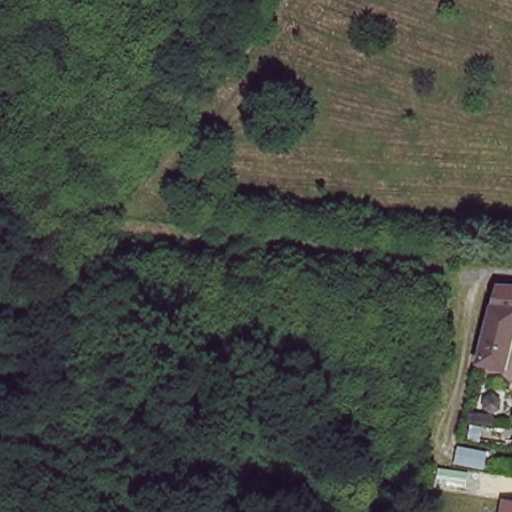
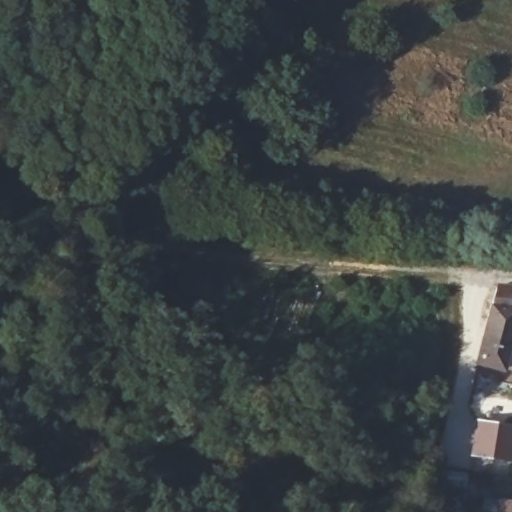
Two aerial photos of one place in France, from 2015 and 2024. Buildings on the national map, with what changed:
unchanged [(512,283),(512,365),(479,360),(494,281),(512,283)]
new [(491,460),(468,457),(474,418),(496,420),(512,422),(512,463),(491,460)]
unchanged [(499,496),(512,498),(512,512),(496,512),(499,496)]

